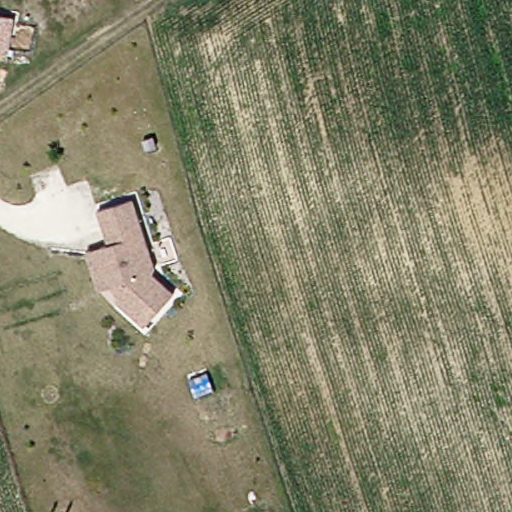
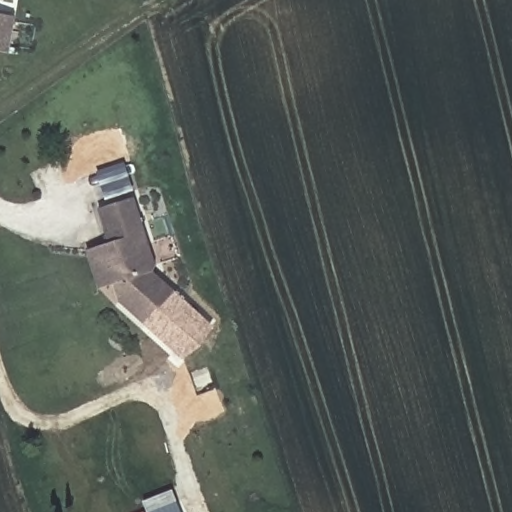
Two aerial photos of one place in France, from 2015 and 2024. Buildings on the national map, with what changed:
unchanged [(21,48),(0,44),(0,4),(29,12),(21,48)]
unchanged [(90,244),(105,240),(118,237),(115,230),(111,230),(105,204),(140,195),(156,266),(155,273),(174,296),(141,325),(117,298),(113,281),(98,283),(90,244)]
new [(174,296),(211,330),(203,347),(181,360),(141,325),(174,296)]
new [(146,510),(142,500),(173,489),(182,512),(140,512),(146,510)]
demolished [(267,501),(268,503),(276,500),(281,512),(236,512),(236,511),(267,501)]

